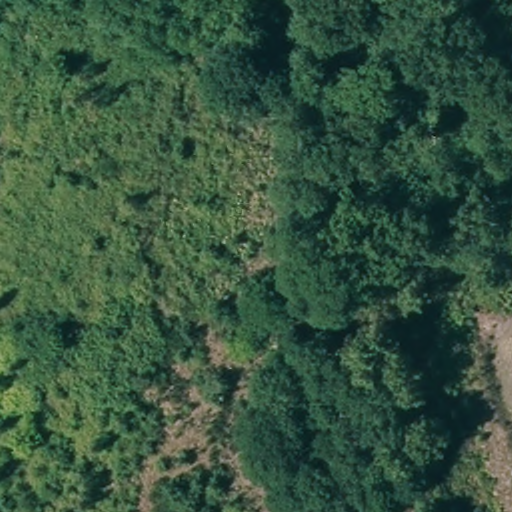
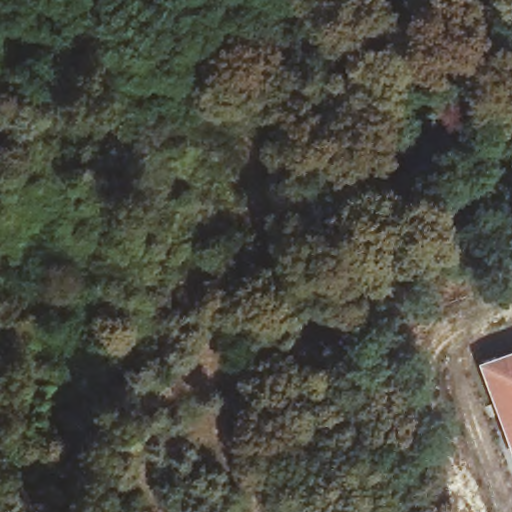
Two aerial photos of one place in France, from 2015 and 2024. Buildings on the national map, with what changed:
new [(512,461),(507,463),(471,367),(512,352),(512,461)]

